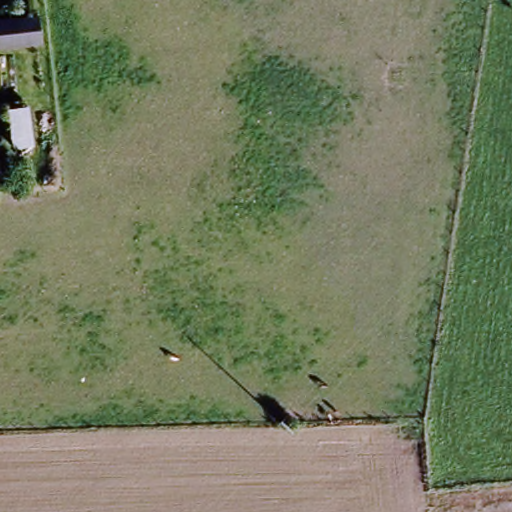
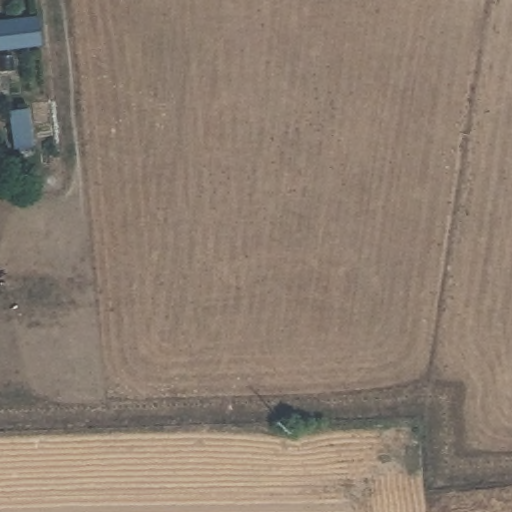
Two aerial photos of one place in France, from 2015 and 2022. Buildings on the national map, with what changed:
unchanged [(41,46),(0,51),(0,21),(38,17),(41,46)]
unchanged [(0,143),(0,110),(20,107),(24,146),(0,148),(0,143)]

